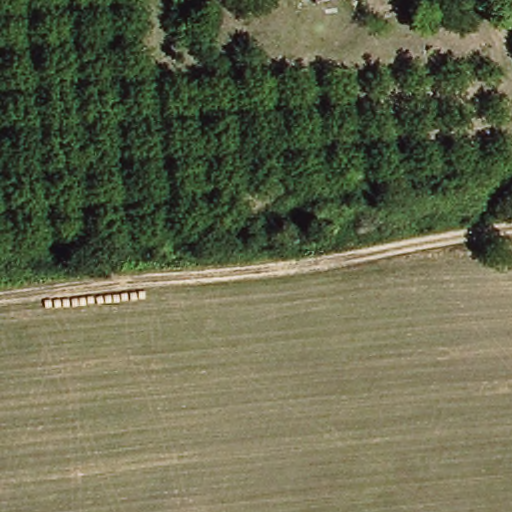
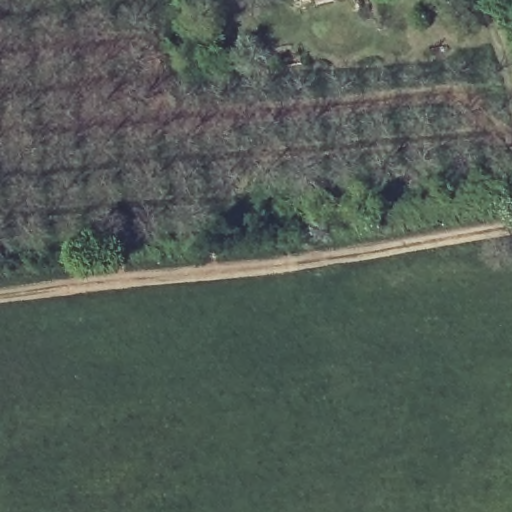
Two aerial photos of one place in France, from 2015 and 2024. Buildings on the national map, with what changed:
unchanged [(309,0),(346,0),(310,6),(309,0)]

